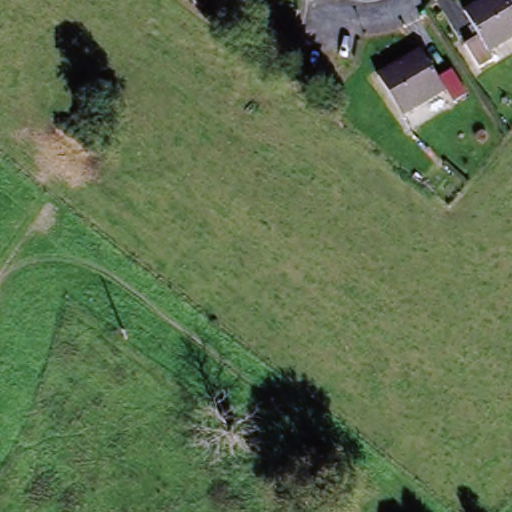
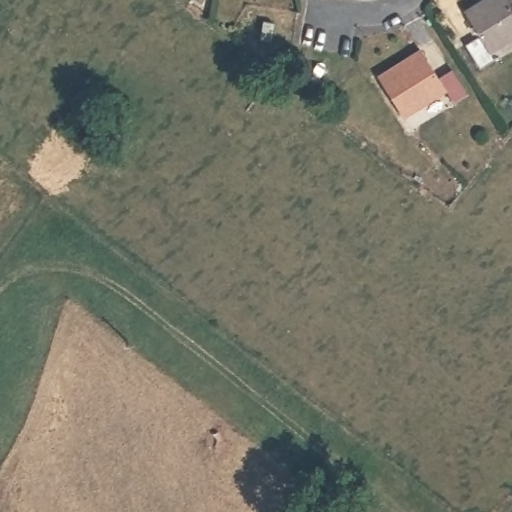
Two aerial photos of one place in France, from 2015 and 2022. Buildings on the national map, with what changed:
unchanged [(472,39),(487,29),(475,10),(489,0),(512,0),(512,44),(501,52),(504,59),(489,68),(472,39)]
unchanged [(450,64),(468,95),(454,105),(445,93),(404,122),(377,79),(418,49),(434,75),(450,64)]

